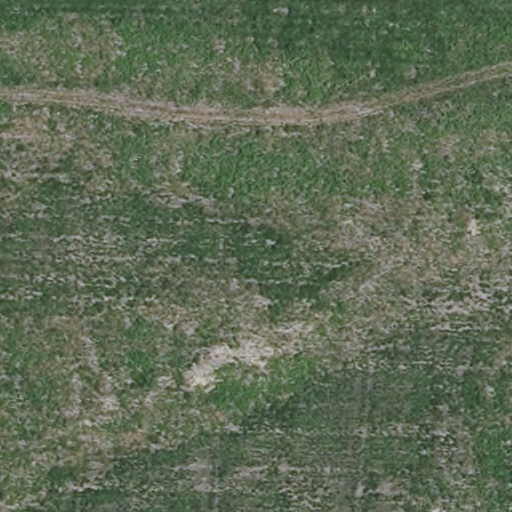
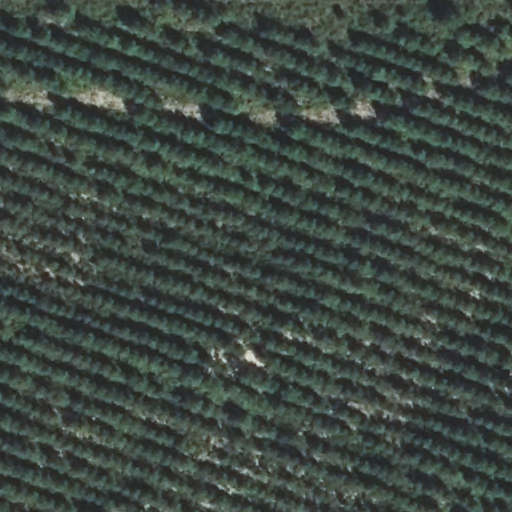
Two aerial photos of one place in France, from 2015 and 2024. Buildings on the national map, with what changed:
[]

